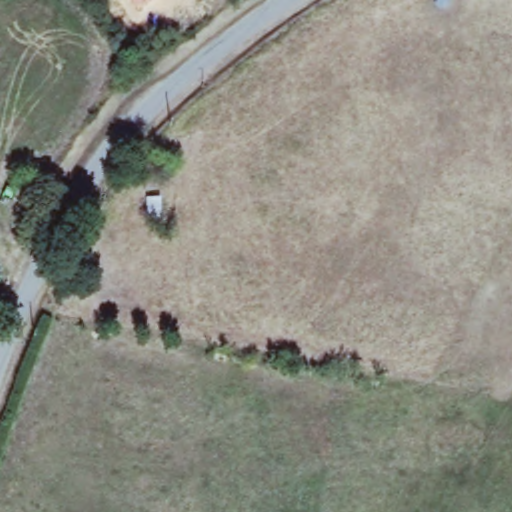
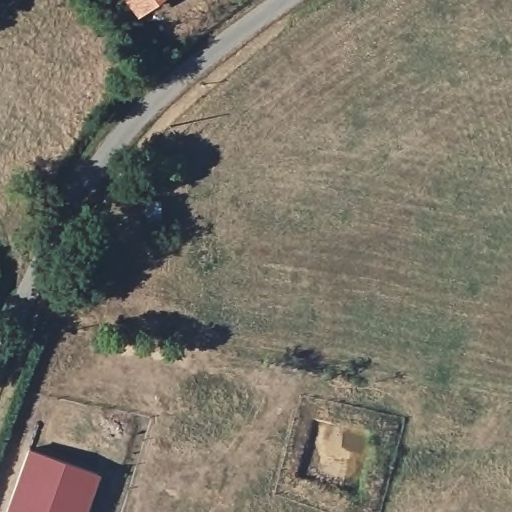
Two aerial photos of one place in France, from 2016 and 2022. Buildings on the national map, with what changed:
unchanged [(124,0),(157,0),(135,15),(124,0)]
new [(86,512),(6,512),(29,448),(99,472),(86,512)]

